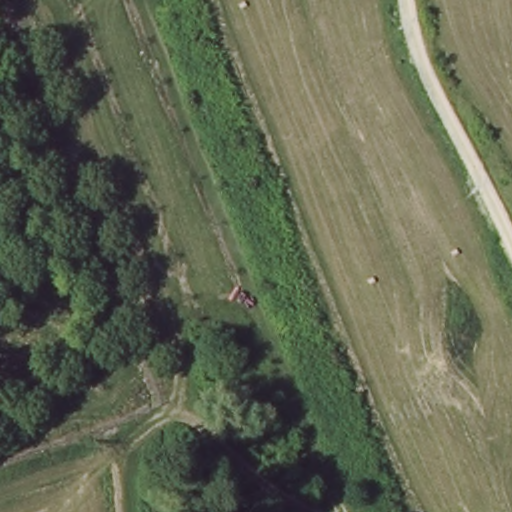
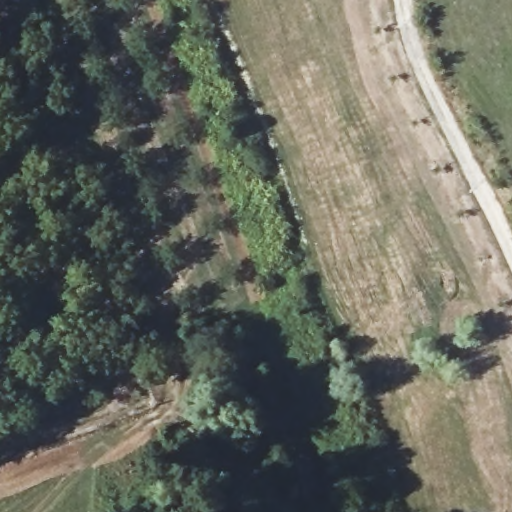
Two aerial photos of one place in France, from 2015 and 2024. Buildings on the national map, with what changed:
[]

